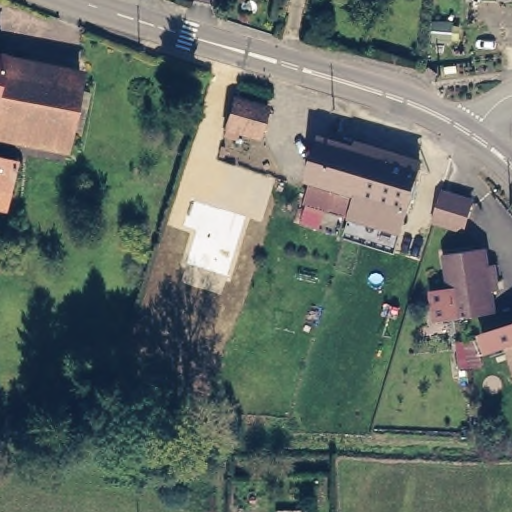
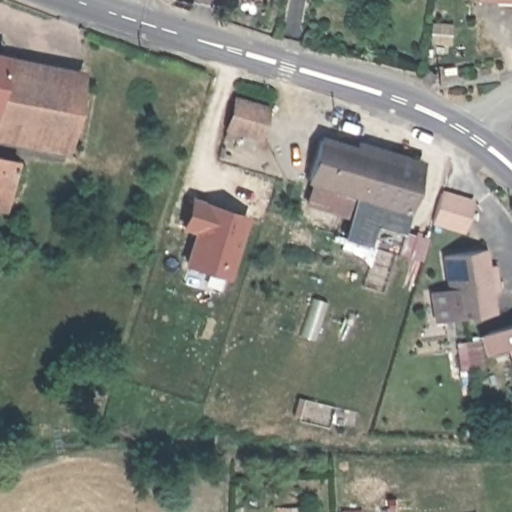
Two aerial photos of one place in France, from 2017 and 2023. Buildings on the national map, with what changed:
unchanged [(487,0),(512,0),(512,1),(487,1),(487,0)]
unchanged [(3,48),(1,58),(112,79),(100,137),(0,117),(0,47),(3,48)]
unchanged [(267,116),(257,144),(226,134),(235,106),(267,116)]
unchanged [(399,223),(350,207),(354,190),(340,184),(340,180),(307,169),(320,130),(329,132),(418,162),(405,204),(399,223)]
unchanged [(20,160),(10,206),(0,204),(0,156),(20,160)]
unchanged [(465,222),(449,217),(434,213),(442,185),(459,190),(473,194),(465,222)]
new [(192,198),(245,216),(225,275),(185,261),(197,229),(183,224),(192,198)]
unchanged [(453,325),(443,260),(486,253),(490,271),(496,270),(500,287),(492,288),(497,319),(463,324),(453,325)]
unchanged [(492,347),(485,328),(512,320),(512,359),(507,343),(492,347)]

